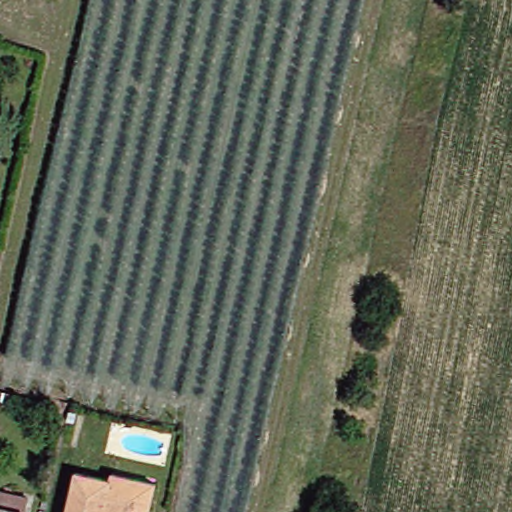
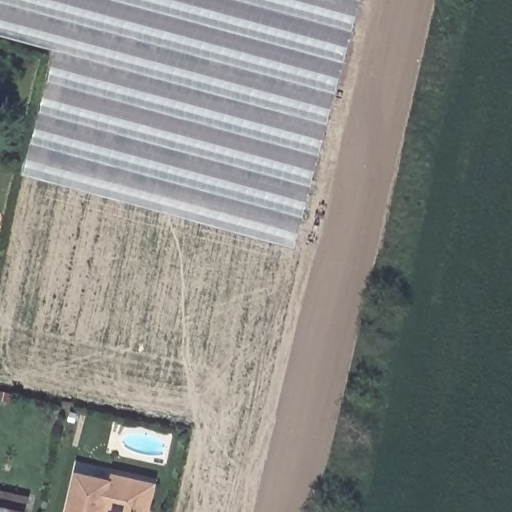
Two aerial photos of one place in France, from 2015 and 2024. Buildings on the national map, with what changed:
new [(56,52),(0,36),(0,0),(362,0),(296,249),(25,175),(56,52)]
unchanged [(115,480),(116,470),(162,480),(156,507),(155,512),(70,512),(79,472),(115,480)]
unchanged [(32,496),(29,512),(0,512),(0,490),(32,496)]

